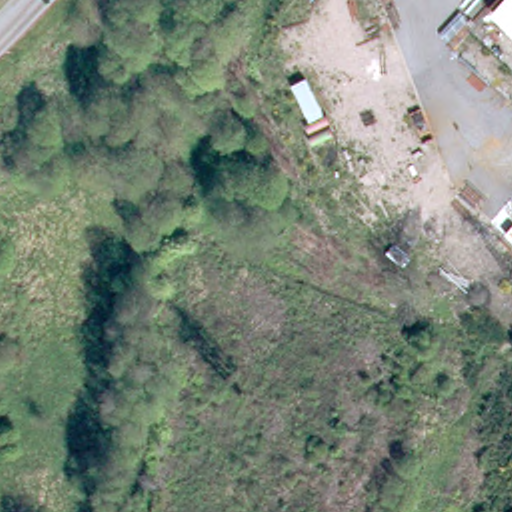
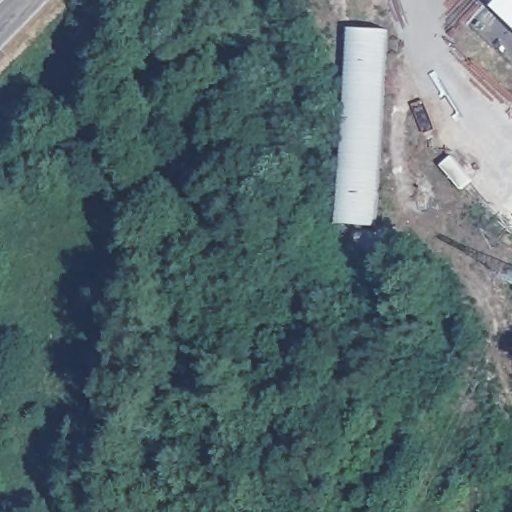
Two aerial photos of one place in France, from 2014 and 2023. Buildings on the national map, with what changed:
demolished [(379,24),(371,0),(403,0),(427,42),(408,51),(379,24)]
unchanged [(512,0),(512,9),(504,9),(498,3),(501,0),(512,0)]
unchanged [(504,9),(512,9),(512,16),(504,9)]
new [(390,27),(378,225),(339,223),(350,23),(390,27)]

